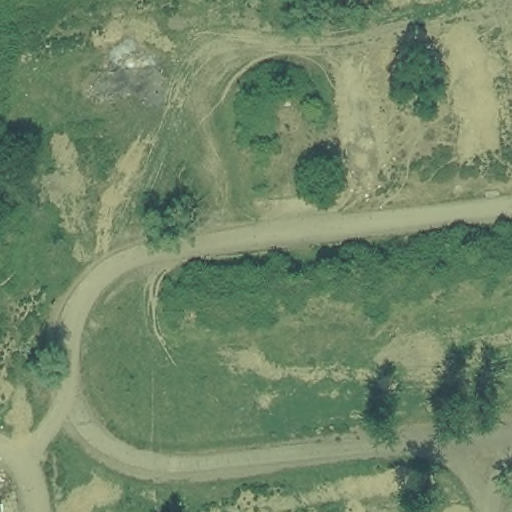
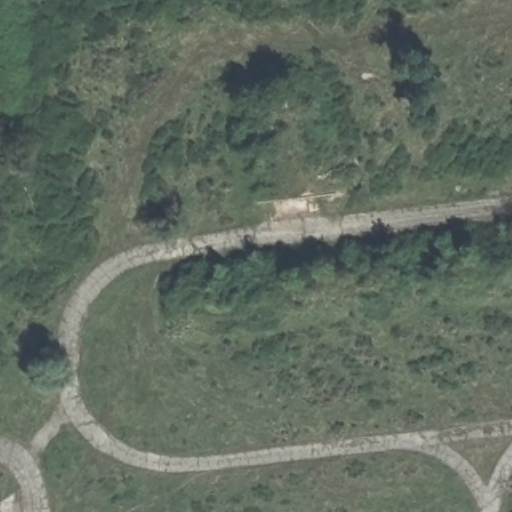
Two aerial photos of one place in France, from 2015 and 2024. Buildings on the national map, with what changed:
unchanged [(5,508),(5,512),(0,512),(0,508),(5,508)]

